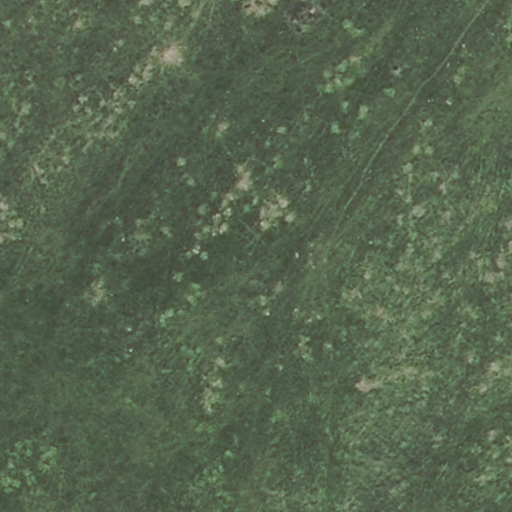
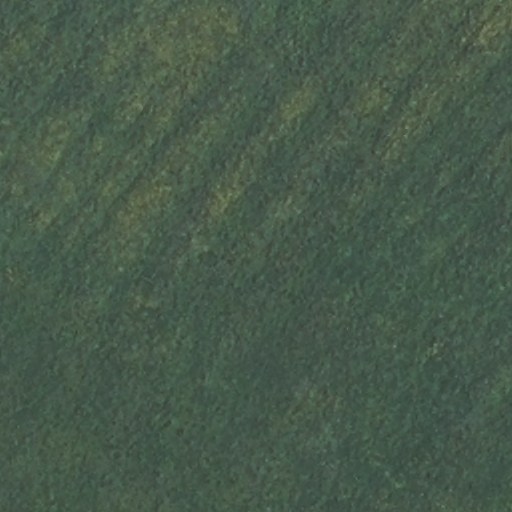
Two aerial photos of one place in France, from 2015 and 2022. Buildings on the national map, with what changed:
[]

